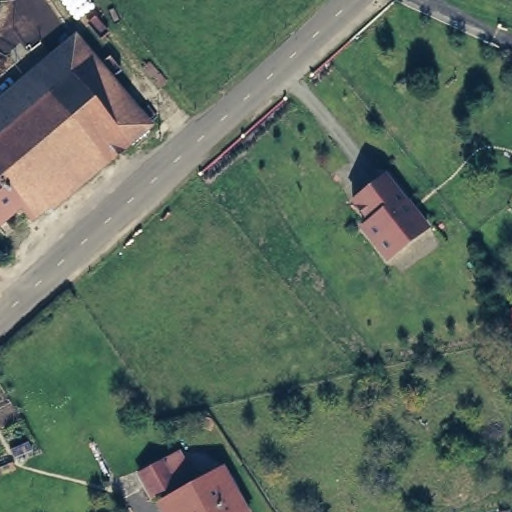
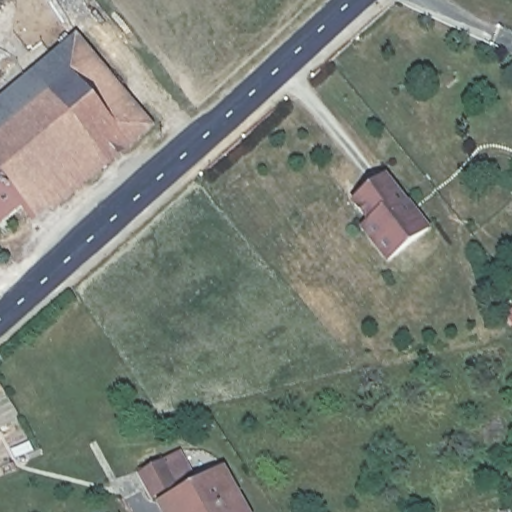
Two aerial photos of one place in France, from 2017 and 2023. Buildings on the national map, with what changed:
unchanged [(30,76),(77,37),(147,122),(27,224),(17,213),(0,227),(0,137),(47,98),(30,76)]
unchanged [(0,137),(0,100),(30,76),(47,98),(0,137)]
unchanged [(430,230),(387,263),(357,229),(366,221),(350,201),(385,174),(430,230)]
unchanged [(187,457),(197,477),(187,482),(160,496),(151,476),(177,462),(187,457)]
unchanged [(219,459),(226,472),(210,480),(203,467),(219,459)]
unchanged [(221,481),(222,480),(224,482),(238,512),(163,512),(162,510),(161,508),(163,507),(221,481)]

